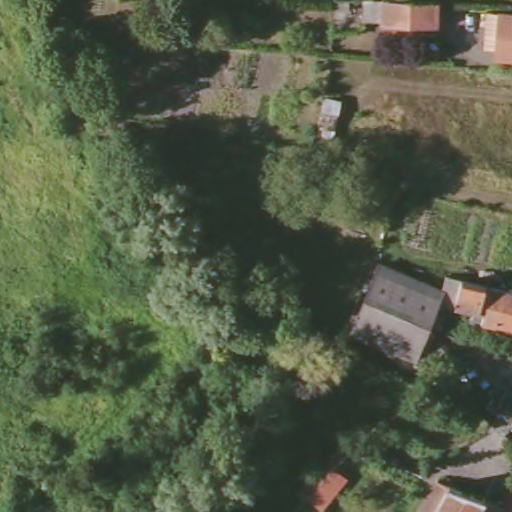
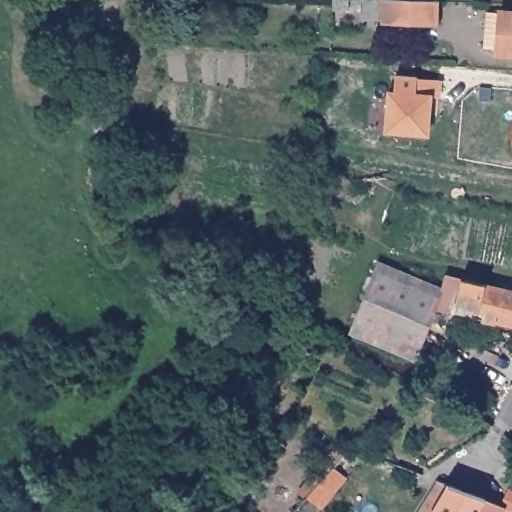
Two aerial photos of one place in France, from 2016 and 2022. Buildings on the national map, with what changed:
unchanged [(438,24),(384,22),(384,18),(370,17),(370,0),(412,0),(439,1),(438,24)]
unchanged [(512,54),(499,52),(503,15),(512,15),(512,54)]
new [(388,91),(394,90),(395,75),(441,80),(440,97),(432,95),(429,136),(383,132),(388,91)]
unchanged [(449,284),(453,272),(512,286),(512,321),(472,312),(474,302),(459,298),(458,308),(436,301),(417,355),(351,327),(381,257),(441,282),(449,284)]
unchanged [(351,445),(332,469),(346,478),(319,510),(294,490),(337,438),(351,445)]
unchanged [(483,494),(507,508),(505,512),(427,512),(441,480),(483,494)]
unchanged [(512,492),(512,511),(507,508),(512,492)]

